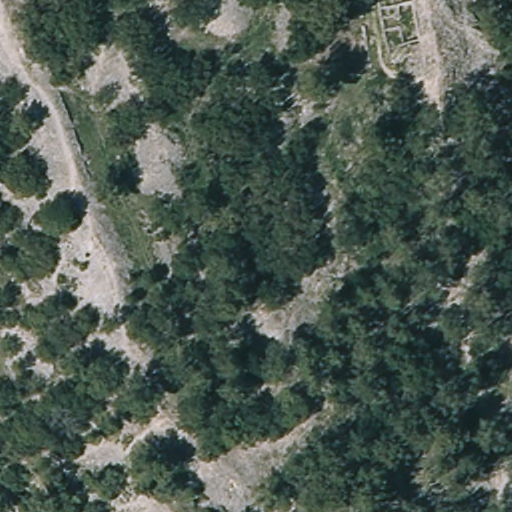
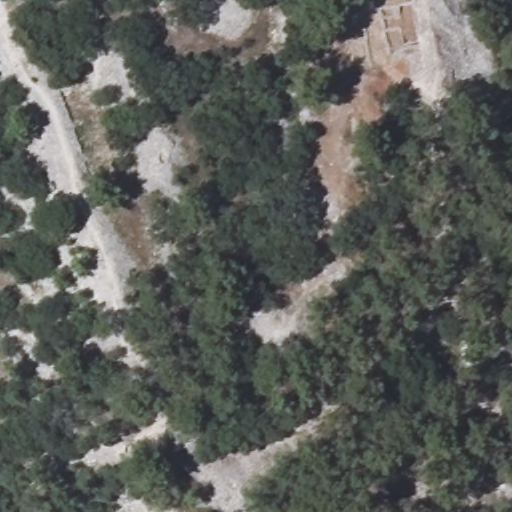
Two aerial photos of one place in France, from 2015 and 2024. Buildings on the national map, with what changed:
unchanged [(499,38),(504,89),(451,99),(407,92),(413,47),(420,47),(417,23),(414,0),(469,0),(476,38),(499,38)]

